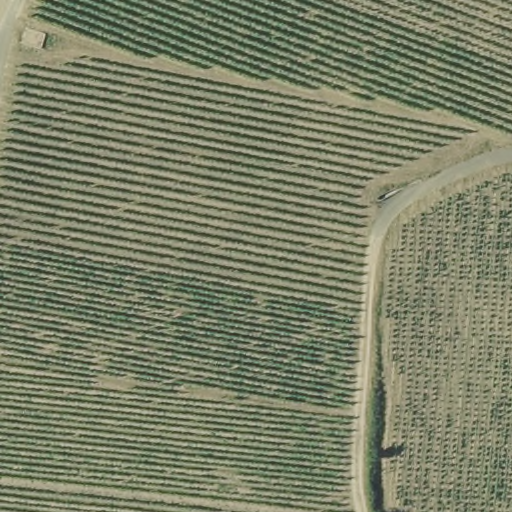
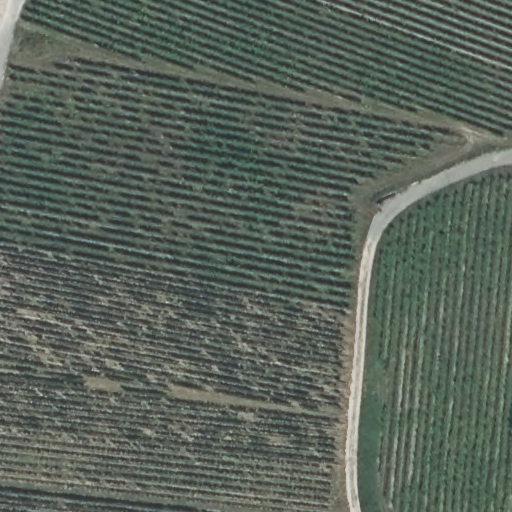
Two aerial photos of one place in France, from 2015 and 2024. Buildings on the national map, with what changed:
unchanged [(20,30),(41,39),(35,57),(13,48),(20,30)]

